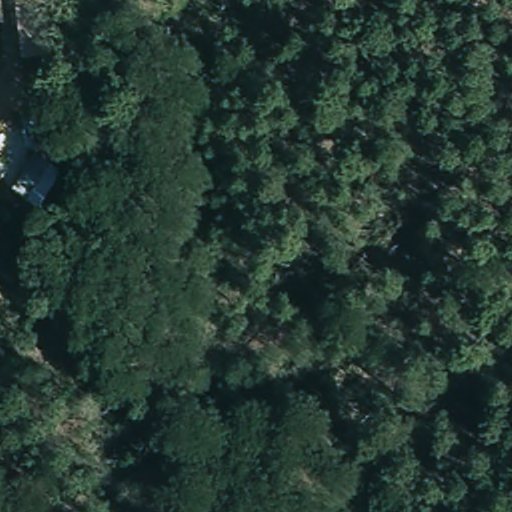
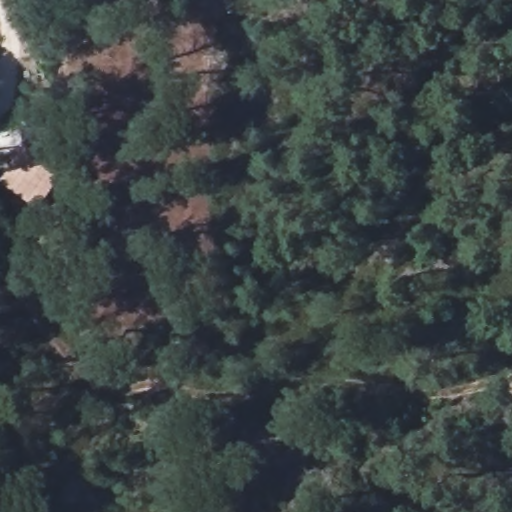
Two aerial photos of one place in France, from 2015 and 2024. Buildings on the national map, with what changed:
unchanged [(49,117),(51,149),(22,150),(22,119),(49,117)]
unchanged [(64,172),(41,210),(10,190),(35,153),(64,172)]

